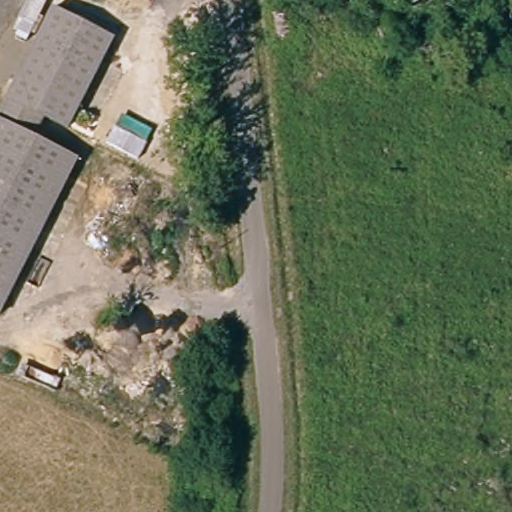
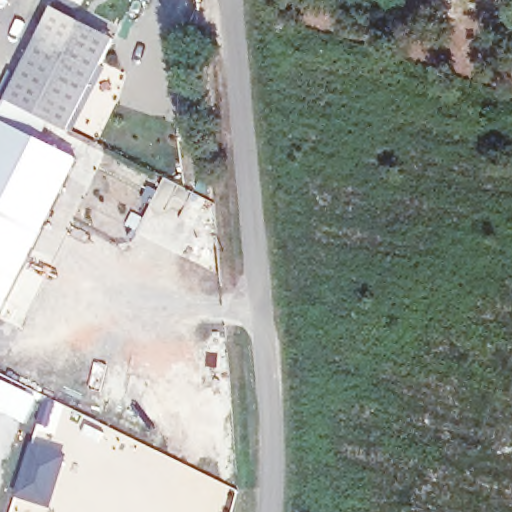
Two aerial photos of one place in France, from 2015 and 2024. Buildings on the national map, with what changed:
unchanged [(56,149),(79,161),(71,177),(91,188),(74,225),(52,213),(0,315),(0,105),(50,8),(110,40),(56,149)]
new [(26,422),(0,409),(0,378),(38,396),(26,422)]
new [(33,436),(66,447),(49,506),(11,493),(33,436)]

